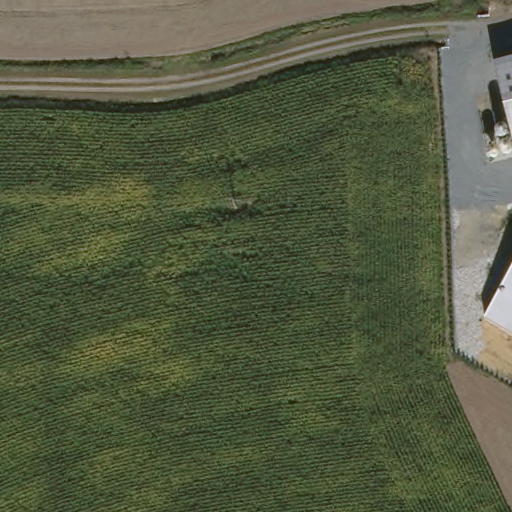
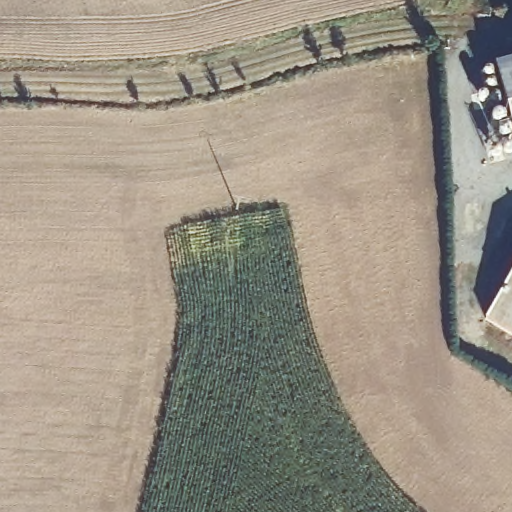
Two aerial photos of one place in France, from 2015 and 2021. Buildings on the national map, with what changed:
unchanged [(495,67),(512,62),(512,137),(495,67)]
unchanged [(485,319),(512,273),(512,335),(485,319)]

